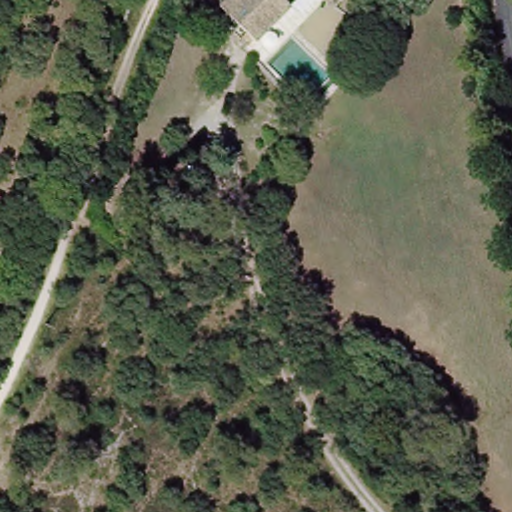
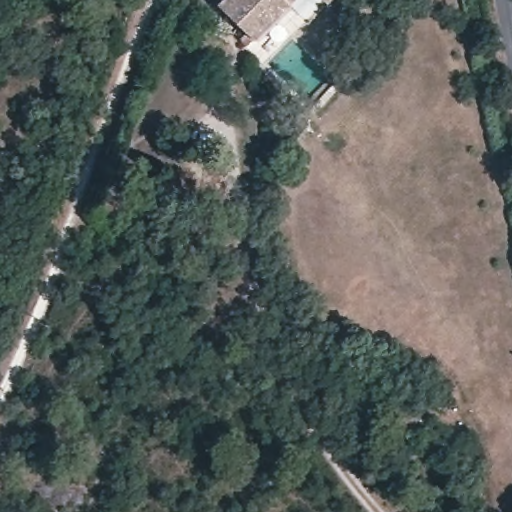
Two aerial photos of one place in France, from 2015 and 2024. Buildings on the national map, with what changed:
unchanged [(220,12),(230,0),(288,0),(287,0),(292,7),(248,50),(238,42),(232,36),(238,30),(220,12)]
unchanged [(328,5),(323,0),(338,0),(334,4),(328,5)]

